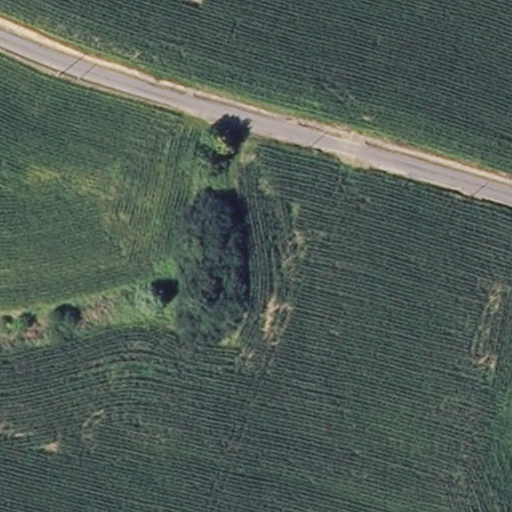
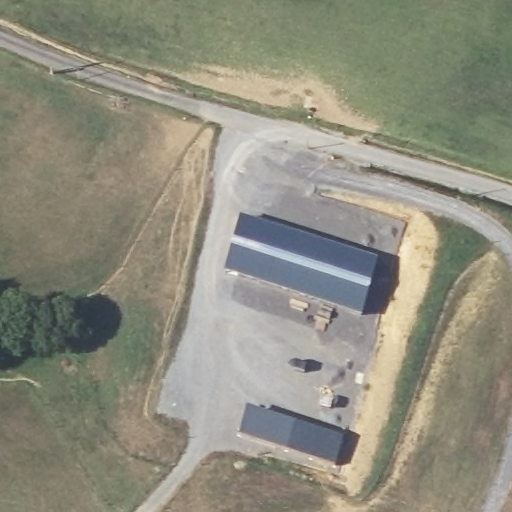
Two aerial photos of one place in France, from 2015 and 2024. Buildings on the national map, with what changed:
new [(239,219),(283,229),(378,257),(362,313),(327,303),(285,294),(223,275),(239,219)]

